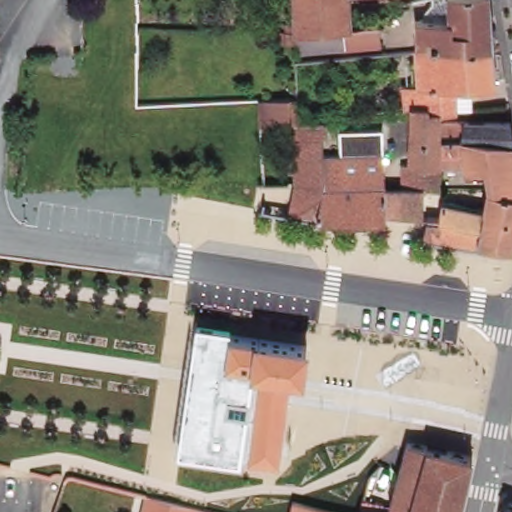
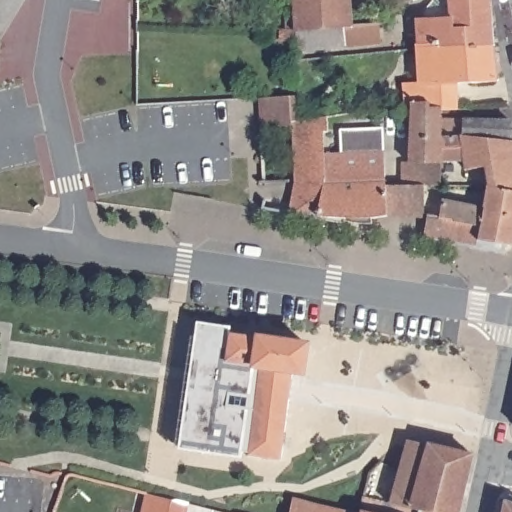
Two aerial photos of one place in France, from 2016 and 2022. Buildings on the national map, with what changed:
unchanged [(298,22),(298,10),(297,0),(354,0),(355,16),(380,14),(384,39),(347,42),(298,48),(298,22)]
unchanged [(491,48),(461,48),(456,48),(456,45),(421,45),(421,19),(455,13),(454,3),(439,5),(438,0),(493,0),(497,48),(491,48)]
unchanged [(421,45),(456,45),(456,48),(461,48),(491,48),(497,48),(499,81),(499,84),(459,85),(461,107),(447,108),(445,108),(429,108),(429,101),(414,104),(413,104),(408,104),(406,83),(422,82),(421,49),(421,45)]
unchanged [(349,225),(293,215),(297,180),(297,159),(295,123),(267,126),(269,156),(269,181),(264,182),(264,186),(256,186),(253,121),(267,121),(265,95),(299,94),(299,120),(309,119),(319,118),(319,131),(314,131),(315,152),(331,152),(330,130),(374,129),(384,185),(403,183),(403,162),(411,162),(412,161),(413,104),(414,104),(429,101),(429,108),(445,108),(445,115),(444,132),(465,135),(467,118),(512,122),(512,246),(508,245),(507,254),(453,244),(427,240),(430,219),(409,217),(350,218),(349,225)]
unchanged [(185,449),(202,327),(234,333),(230,362),(264,366),(262,385),(250,456),(185,449)]
unchanged [(262,385),(264,366),(230,362),(234,333),(268,338),(309,344),(306,372),(295,370),(293,396),(283,460),(250,456),(262,385)]
unchanged [(435,512),(402,504),(400,503),(399,503),(396,502),(409,446),(411,440),(434,445),(476,454),(461,512),(435,512)]
unchanged [(202,512),(144,512),(149,495),(197,505),(204,507),(202,512)]
unchanged [(387,504),(385,512),(365,512),(368,500),(387,504)]
unchanged [(512,501),(512,512),(507,512),(509,500),(512,501)]
unchanged [(337,512),(297,512),(299,503),(337,512)]
unchanged [(400,503),(402,504),(435,512),(396,512),(399,503),(400,503)]

